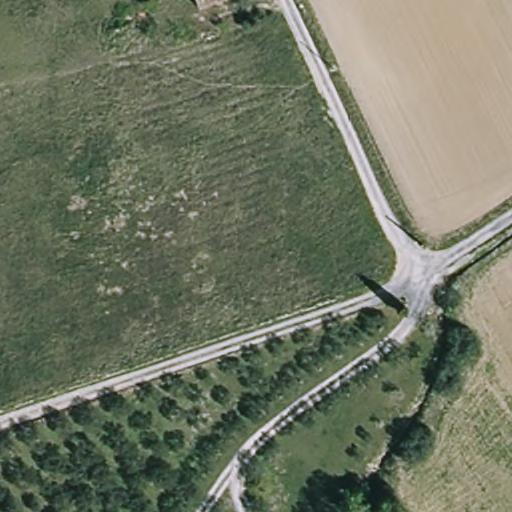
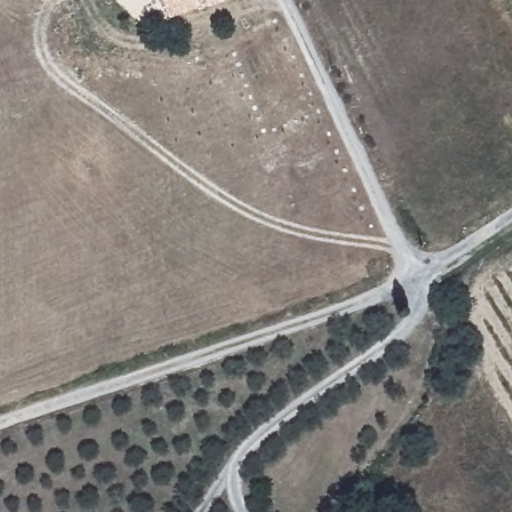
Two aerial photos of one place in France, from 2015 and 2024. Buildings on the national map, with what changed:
new [(197,8),(170,18),(163,0),(194,0),(197,8)]
unchanged [(233,0),(198,11),(194,0),(233,0)]

